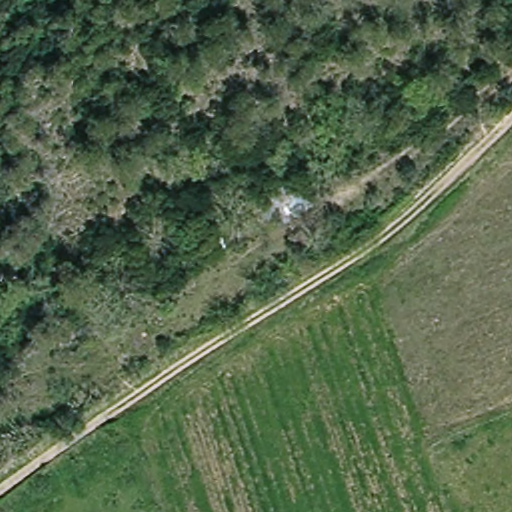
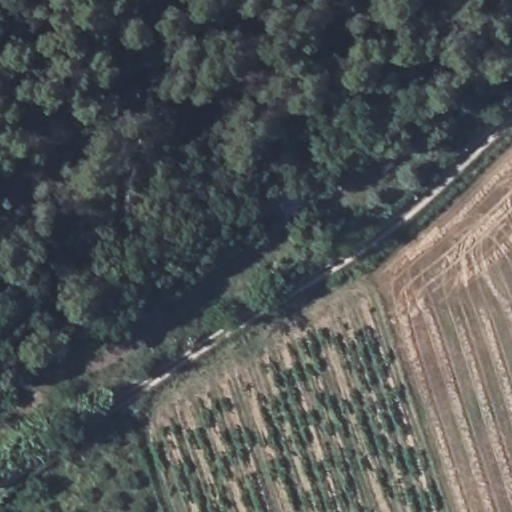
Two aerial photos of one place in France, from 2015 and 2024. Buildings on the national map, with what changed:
unchanged [(287,222),(273,199),(298,180),(315,205),(287,222)]

